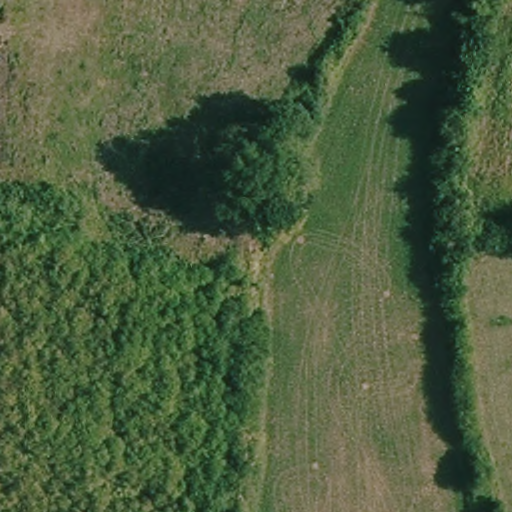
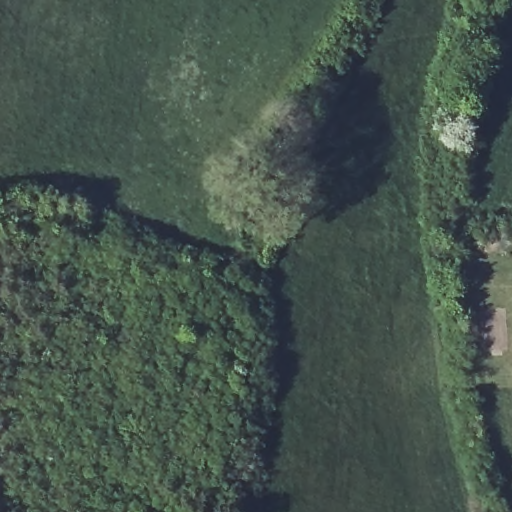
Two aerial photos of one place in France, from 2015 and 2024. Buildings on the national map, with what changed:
[]

